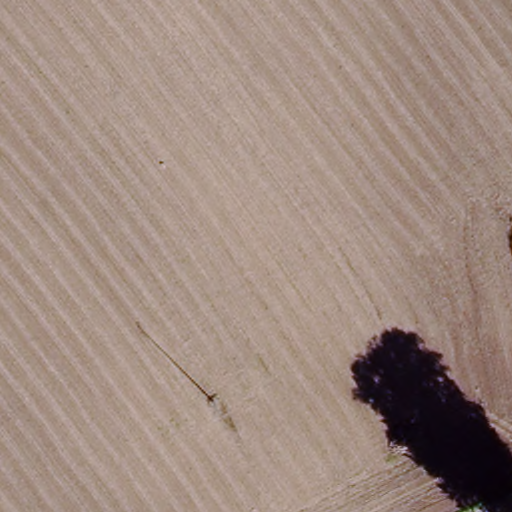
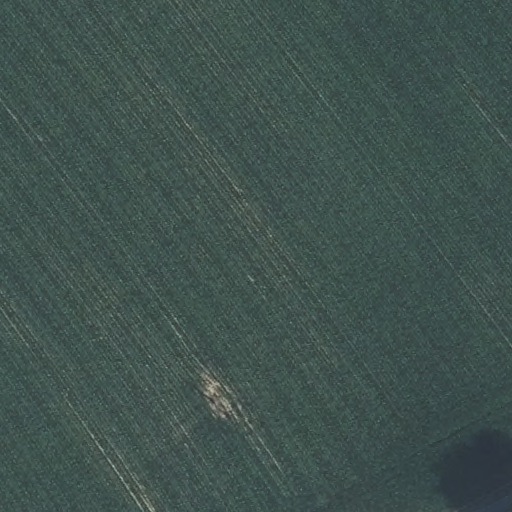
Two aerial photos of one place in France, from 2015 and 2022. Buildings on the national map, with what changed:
[]

